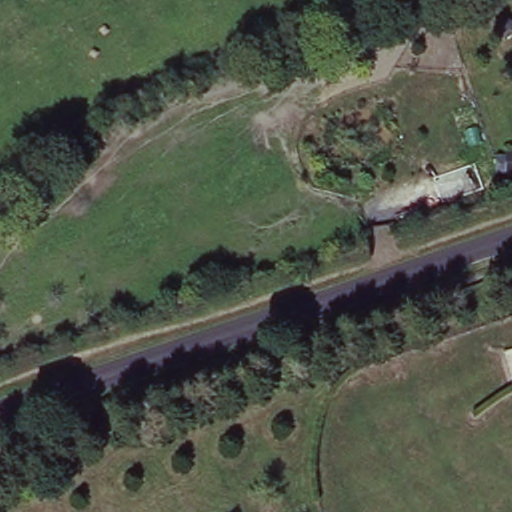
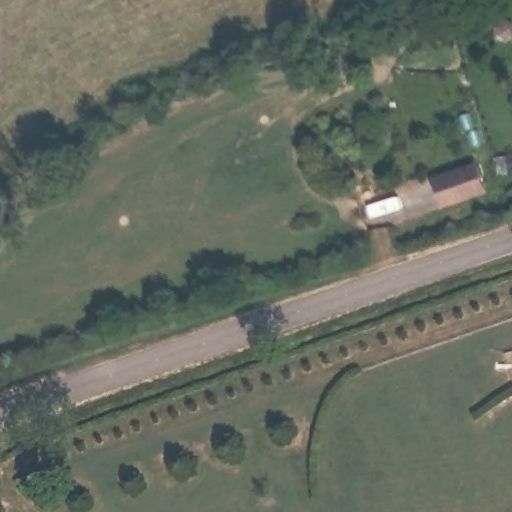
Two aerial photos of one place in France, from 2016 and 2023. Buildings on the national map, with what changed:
new [(477,161),(485,192),(443,204),(435,175),(477,161)]

